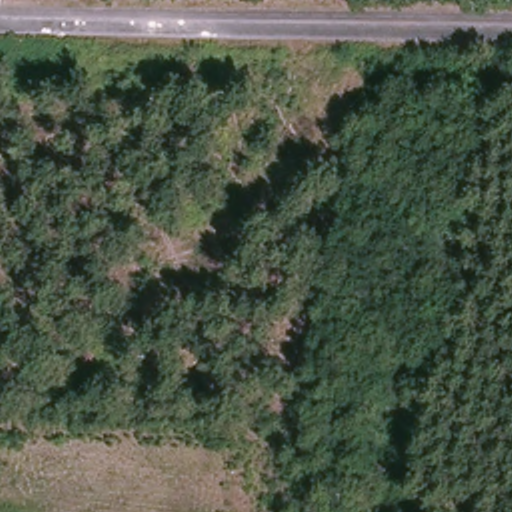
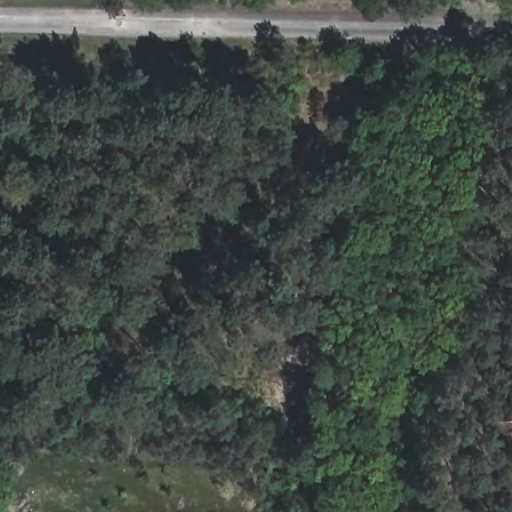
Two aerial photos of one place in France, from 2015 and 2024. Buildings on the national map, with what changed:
[]

